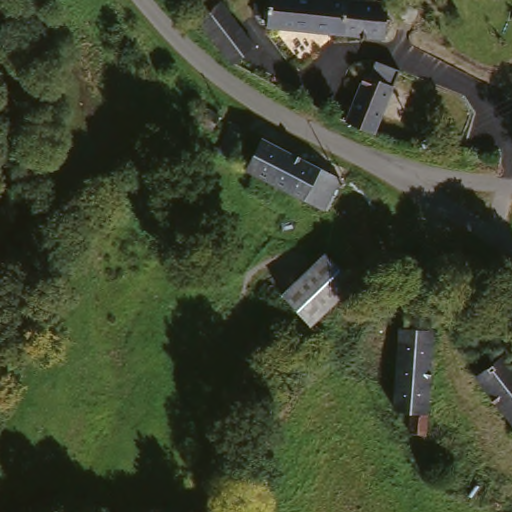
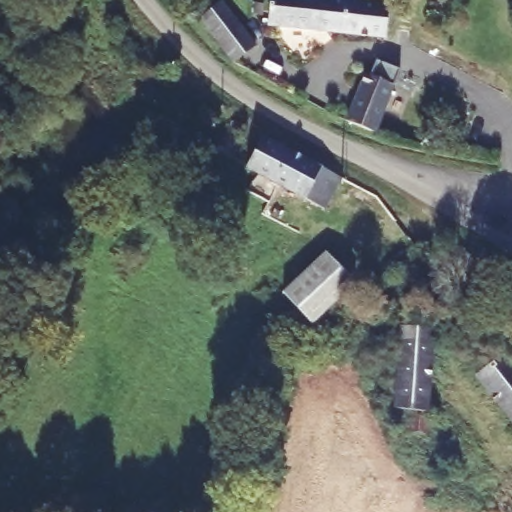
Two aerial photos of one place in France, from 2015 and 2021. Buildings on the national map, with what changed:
unchanged [(209,10),(215,5),(221,0),(222,0),(256,44),(234,62),(199,19),(209,10)]
unchanged [(401,5),(419,6),(439,8),(434,42),(389,38),(386,42),(269,30),(272,0),(342,0),(401,5)]
unchanged [(379,54),(406,66),(399,79),(372,139),(342,126),(363,81),(379,54)]
unchanged [(204,107),(219,115),(204,136),(192,128),(204,107)]
unchanged [(229,165),(211,155),(231,121),(246,130),(229,165)]
unchanged [(326,209),(306,197),(246,165),(261,135),(339,179),(326,209)]
unchanged [(324,252),(356,286),(313,328),(283,292),(324,252)]
unchanged [(415,433),(414,414),(398,412),(401,328),(439,327),(434,435),(415,433)]
unchanged [(507,353),(512,359),(512,416),(478,375),(507,353)]

